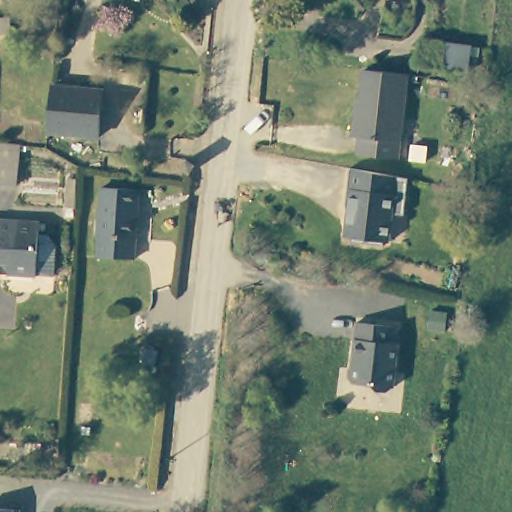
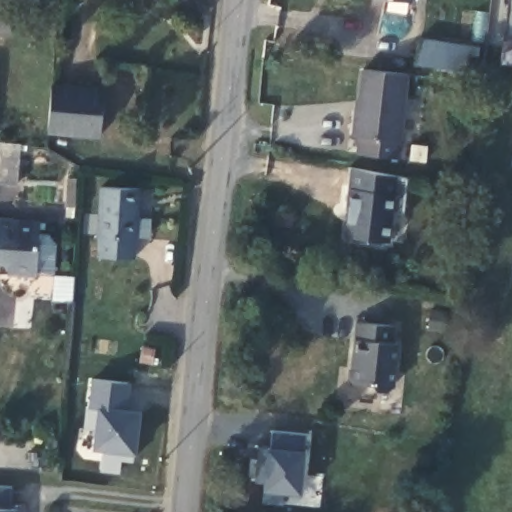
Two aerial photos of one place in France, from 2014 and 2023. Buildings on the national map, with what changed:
unchanged [(399,0),(406,0),(406,1),(399,0)]
unchanged [(478,70),(467,68),(466,74),(416,66),(421,38),(470,46),(480,48),(478,70)]
unchanged [(403,72),(393,157),(352,152),(354,135),(348,134),(351,109),(354,110),(359,67),(403,72)]
unchanged [(104,92),(101,136),(47,132),(50,87),(104,92)]
unchanged [(0,183),(0,143),(8,144),(19,144),(19,148),(17,184),(0,183)]
unchanged [(396,174),(406,176),(402,212),(390,211),(387,240),(382,240),(382,244),(349,240),(349,236),(344,235),(347,207),(343,206),(348,165),(396,174)]
unchanged [(141,190),(137,260),(99,257),(104,189),(141,190)]
unchanged [(50,246),(48,277),(31,276),(31,277),(6,276),(7,262),(0,261),(0,220),(35,222),(34,233),(44,234),(50,246)]
unchanged [(399,326),(396,342),(400,345),(394,385),(390,390),(385,391),(379,388),(377,384),(361,382),(355,381),(350,374),(351,366),(358,361),(359,353),(357,350),(359,339),(356,335),(359,322),(370,323),(399,326)]
new [(128,410),(141,412),(136,455),(135,462),(121,460),(120,474),(100,472),(102,451),(93,450),(95,430),(85,429),(87,407),(90,380),(130,383),(128,410)]
new [(299,494),(285,492),(284,502),(262,500),(265,469),(257,468),(258,447),(270,448),(271,431),(305,433),(299,494)]
unchanged [(10,512),(0,512),(0,511),(10,512)]

